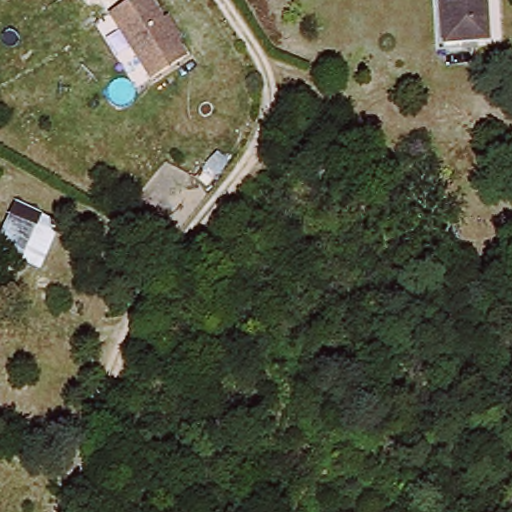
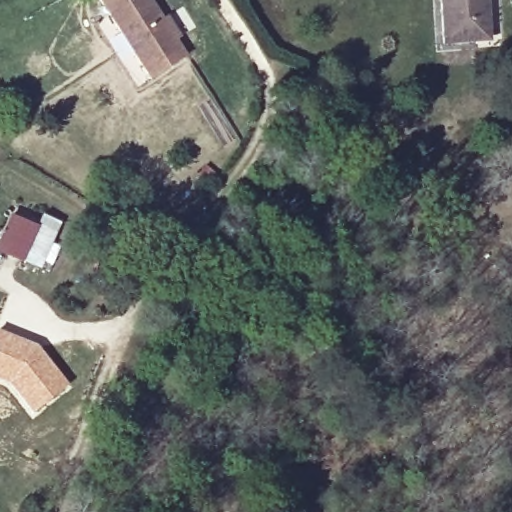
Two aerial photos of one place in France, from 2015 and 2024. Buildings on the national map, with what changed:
unchanged [(104,14),(123,0),(146,0),(157,16),(161,13),(177,34),(172,37),(184,54),(151,78),(104,14)]
unchanged [(445,45),(440,0),(486,0),(491,39),(445,45)]
unchanged [(38,271),(0,255),(0,234),(13,201),(61,223),(38,271)]
new [(68,386),(32,414),(7,386),(0,383),(0,332),(36,345),(68,386)]

